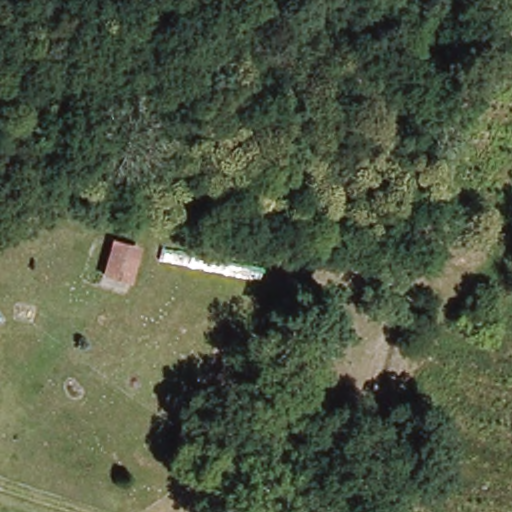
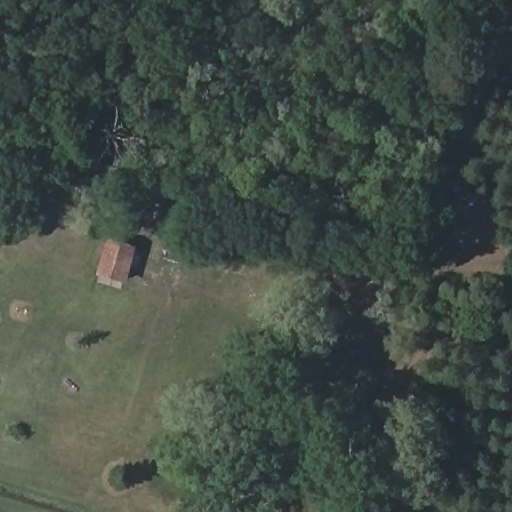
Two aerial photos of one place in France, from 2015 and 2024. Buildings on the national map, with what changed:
unchanged [(134,246),(128,281),(105,276),(111,242),(134,246)]

